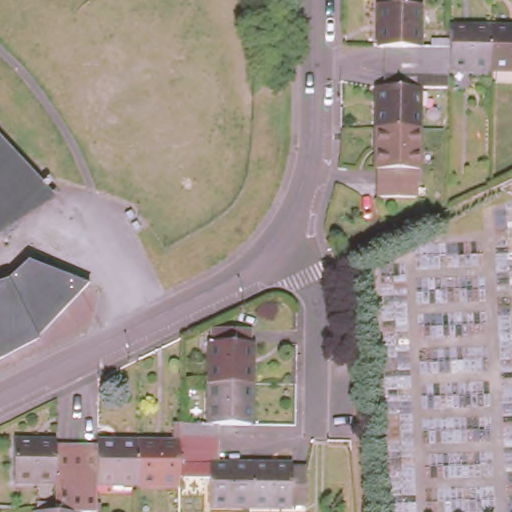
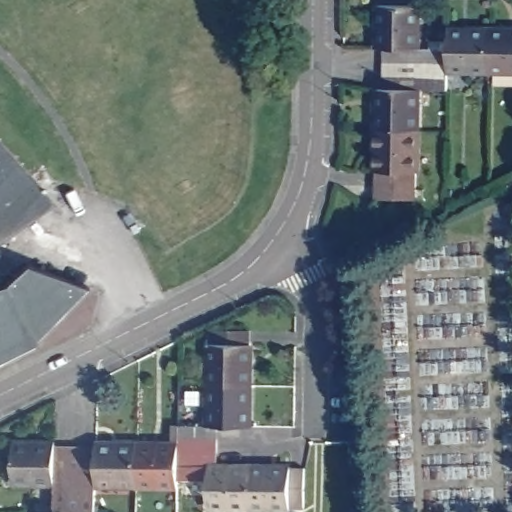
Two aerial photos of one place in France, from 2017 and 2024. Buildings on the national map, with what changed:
unchanged [(380,84),(385,84),(387,41),(380,41),(381,1),(420,2),(420,42),(450,42),(451,23),(490,24),(490,65),(450,64),(450,71),(450,85),(420,85),(418,125),(378,125),(380,84)]
unchanged [(490,24),(512,24),(512,65),(490,65),(490,24)]
unchanged [(377,180),(377,166),(378,125),(418,125),(417,167),(417,181),(417,191),(417,195),(410,195),(377,193),(377,180)]
unchanged [(5,242),(0,237),(0,137),(47,189),(16,216),(23,225),(5,242)]
unchanged [(3,287),(28,260),(82,281),(34,330),(0,348),(0,288),(3,287)]
unchanged [(0,361),(0,348),(34,330),(82,281),(90,285),(26,347),(0,361)]
unchanged [(212,345),(212,331),(252,332),(251,345),(251,385),(211,385),(212,345)]
unchanged [(210,507),(210,467),(180,466),(179,487),(137,486),(138,445),(180,446),(180,439),(180,425),(210,426),(211,385),(251,385),(250,426),(218,426),(218,440),(218,455),(218,468),(252,468),(251,508),(210,507)]
unchanged [(13,482),(13,442),(56,445),(56,447),(97,448),(97,445),(138,445),(137,486),(97,485),(96,512),(55,512),(55,483),(13,482)]
unchanged [(307,510),(292,510),(251,508),(252,468),(292,470),(307,470),(307,510)]

